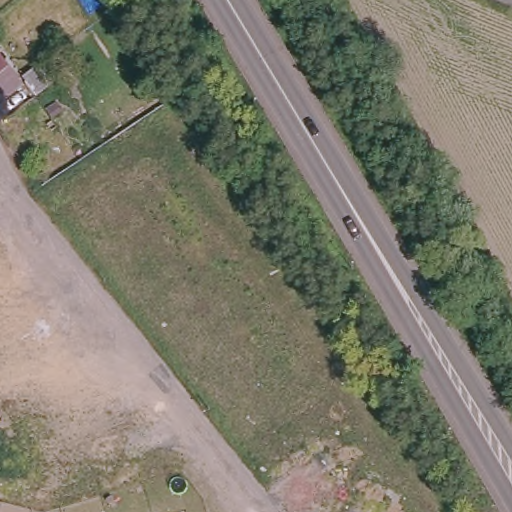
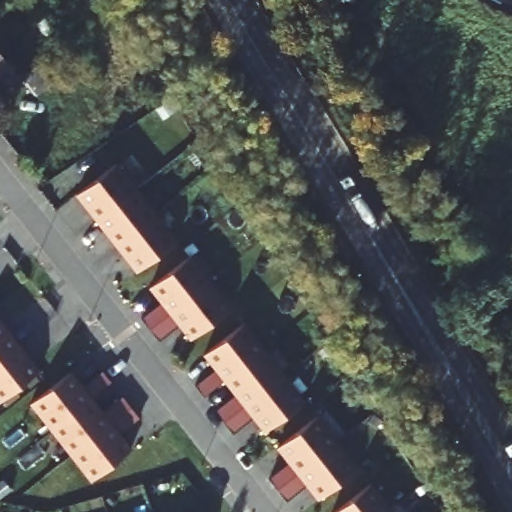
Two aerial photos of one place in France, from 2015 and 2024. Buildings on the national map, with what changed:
unchanged [(7,99),(0,89),(0,55),(25,87),(7,99)]
unchanged [(40,75),(37,70),(49,61),(63,79),(42,96),(31,82),(40,75)]
new [(115,165),(136,192),(95,222),(75,197),(115,165)]
new [(136,192),(155,217),(115,248),(95,222),(136,192)]
new [(155,217),(176,242),(135,274),(115,248),(155,217)]
new [(147,332),(140,321),(160,305),(148,290),(184,262),(205,287),(225,313),(188,342),(176,327),(156,342),(147,332)]
unchanged [(0,361),(0,324),(18,347),(0,361)]
new [(212,414),(232,398),(221,384),(201,400),(192,389),(212,373),(201,358),(237,330),(257,356),(277,381),(297,407),(260,436),(249,420),(229,436),(220,425),(212,414)]
unchanged [(38,373),(2,402),(0,399),(0,361),(18,347),(38,373)]
new [(72,453),(53,428),(33,402),(70,375),(81,390),(101,373),(110,385),(90,400),(101,415),(121,399),(130,410),(138,421),(117,436),(130,452),(93,480),(72,453)]
new [(273,493),(265,482),(285,467),(272,452),(309,423),(330,449),(350,476),(313,504),(301,488),(282,503),(273,493)]
new [(362,492),(378,512),(336,512),(362,492)]

